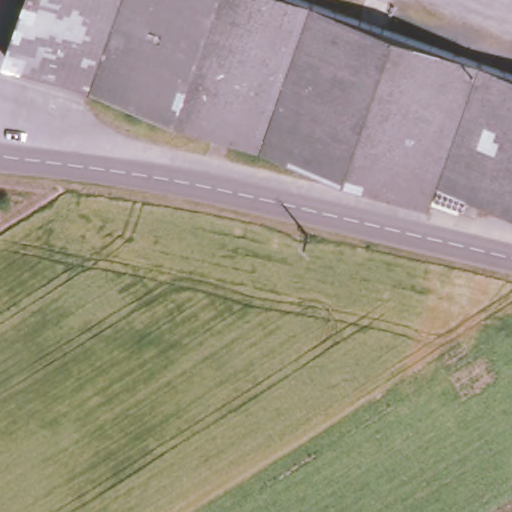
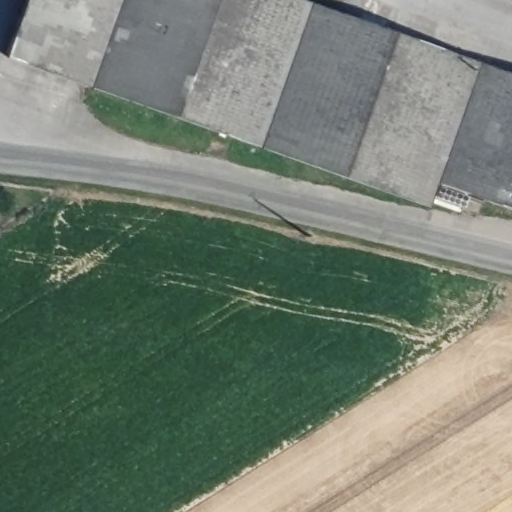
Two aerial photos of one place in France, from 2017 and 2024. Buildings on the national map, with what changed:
unchanged [(429,211),(94,93),(2,66),(17,25),(0,17),(0,0),(293,0),(512,78),(512,213),(478,201),(474,214),(460,209),(465,196),(439,188),(429,211)]

